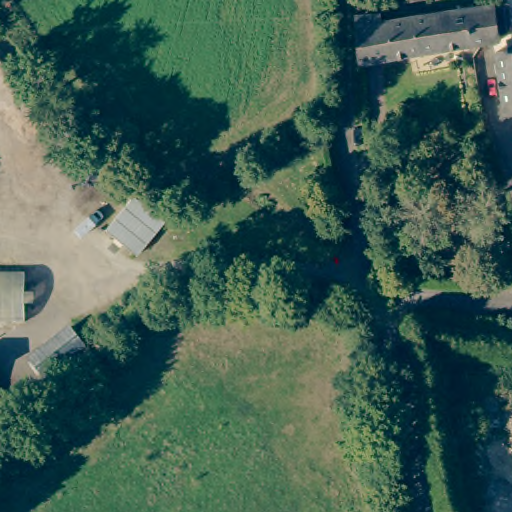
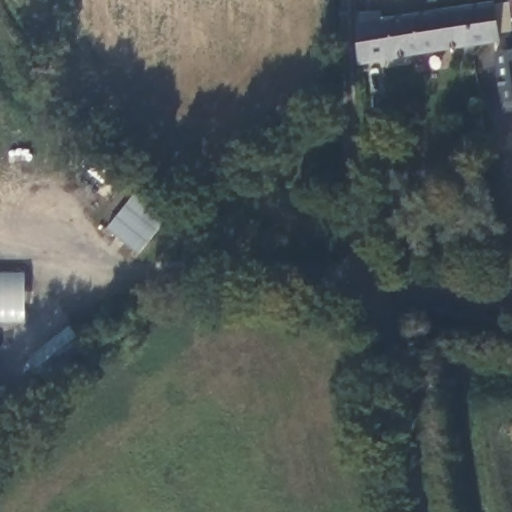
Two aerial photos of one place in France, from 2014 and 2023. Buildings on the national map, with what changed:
unchanged [(357,61),(352,14),(360,13),(379,13),(380,21),(492,3),(497,39),(484,41),(357,61)]
unchanged [(495,54),(508,52),(506,38),(512,37),(512,112),(503,113),(495,54)]
unchanged [(161,217),(137,248),(134,251),(132,250),(102,226),(129,192),(161,217)]
unchanged [(20,278),(20,326),(0,327),(0,278),(20,278)]
unchanged [(65,331),(81,351),(41,383),(25,364),(65,331)]

